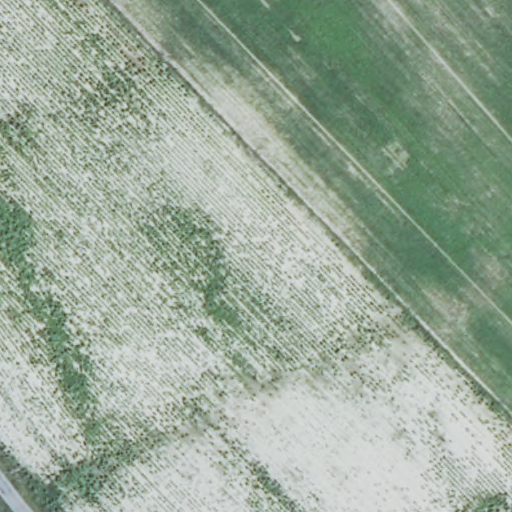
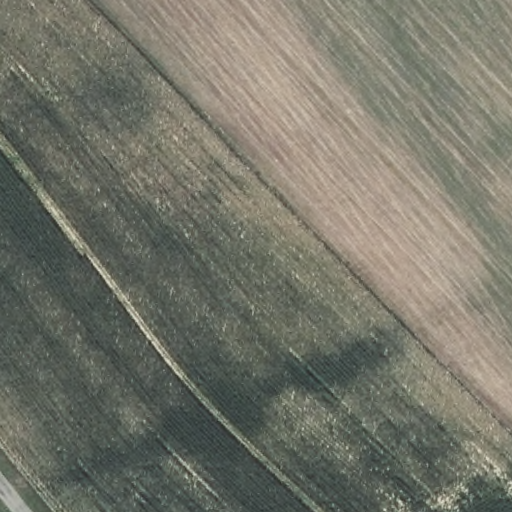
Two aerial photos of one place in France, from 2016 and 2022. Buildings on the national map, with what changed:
[]

